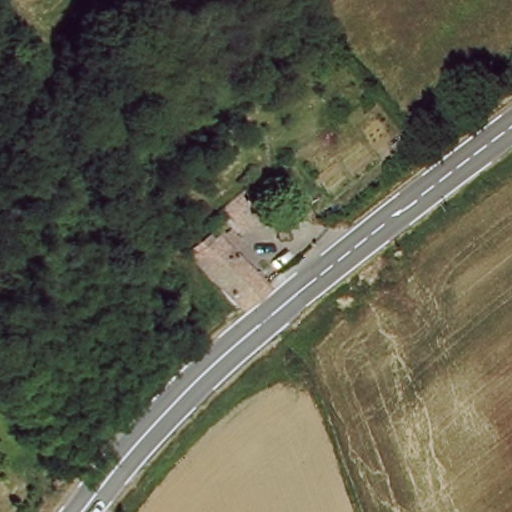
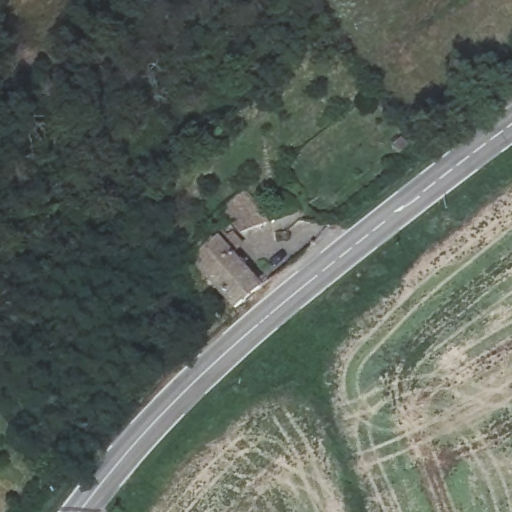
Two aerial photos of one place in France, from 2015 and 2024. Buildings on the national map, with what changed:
unchanged [(266,213),(257,204),(276,187),(293,205),(297,210),(273,221),(266,213)]
unchanged [(240,302),(190,250),(213,231),(262,281),(240,302)]

